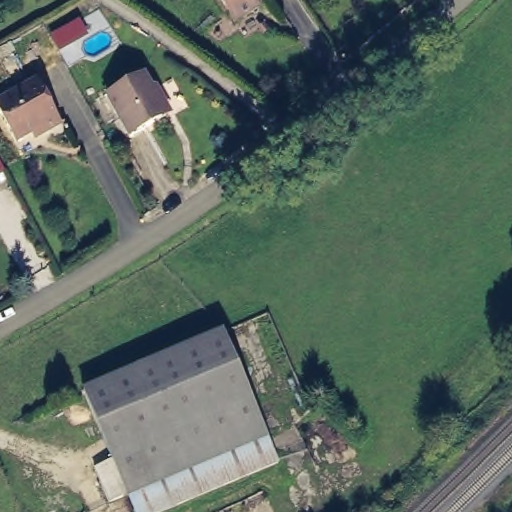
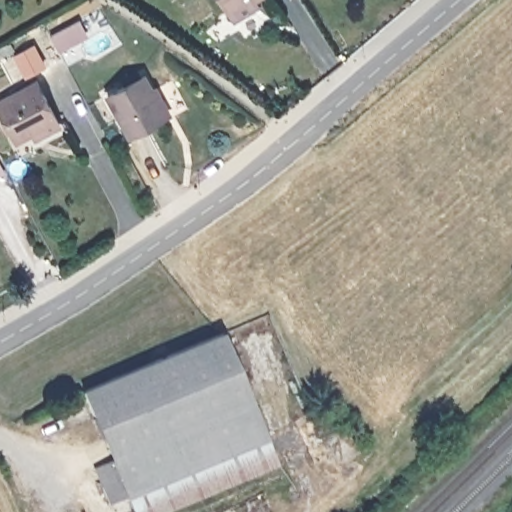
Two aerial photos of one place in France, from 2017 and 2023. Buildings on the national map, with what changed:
unchanged [(254,2),(230,15),(220,0),(253,0),(254,2)]
unchanged [(145,70),(167,110),(130,130),(108,90),(145,70)]
unchanged [(38,137),(35,131),(17,140),(0,109),(0,98),(37,79),(59,119),(55,121),(57,127),(38,137)]
unchanged [(277,462),(155,512),(134,512),(125,490),(105,498),(92,467),(111,459),(82,390),(224,332),(277,462)]

